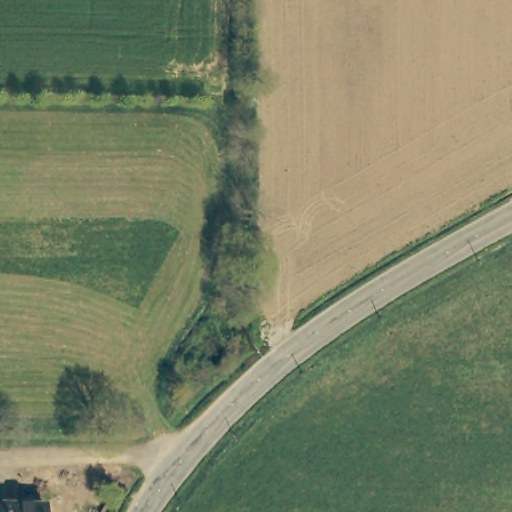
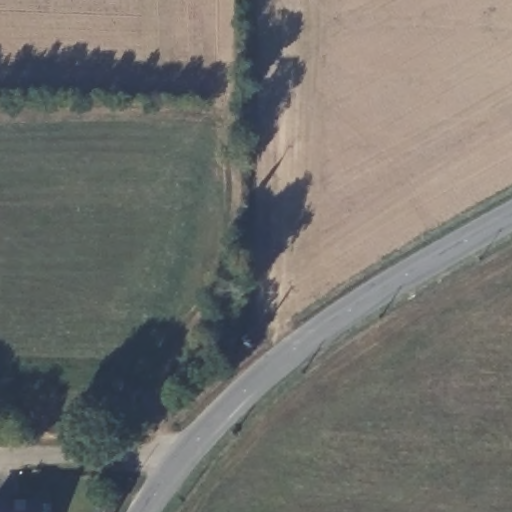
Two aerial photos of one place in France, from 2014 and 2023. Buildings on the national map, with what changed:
unchanged [(44,512),(0,512),(0,503),(45,504),(44,512)]

